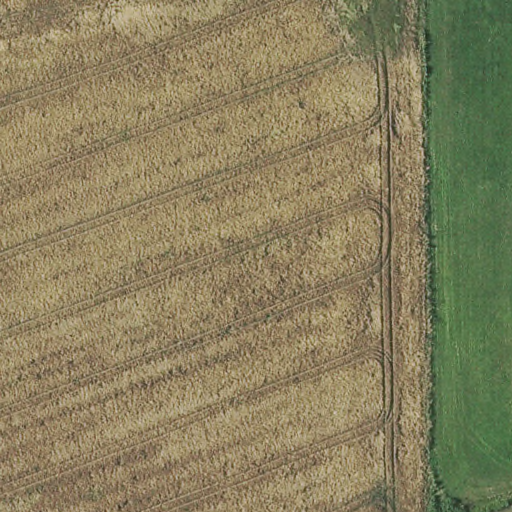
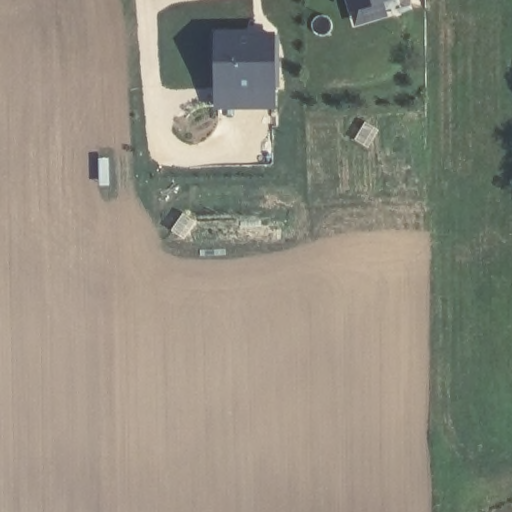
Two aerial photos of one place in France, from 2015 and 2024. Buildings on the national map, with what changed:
new [(384,1),(390,16),(356,27),(348,0),(389,0),(384,1)]
new [(279,35),(281,107),(188,110),(183,38),(279,35)]

